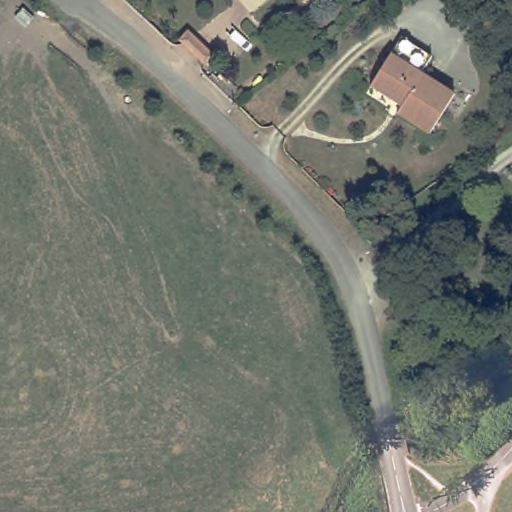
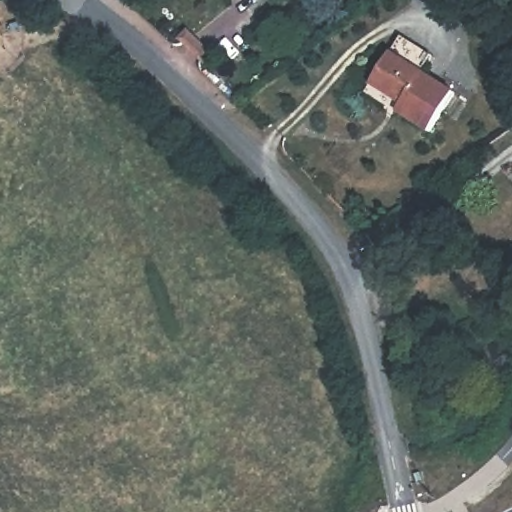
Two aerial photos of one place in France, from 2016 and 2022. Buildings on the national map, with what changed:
unchanged [(390,57),(455,97),(431,137),(399,117),(403,109),(370,89),(390,57)]

